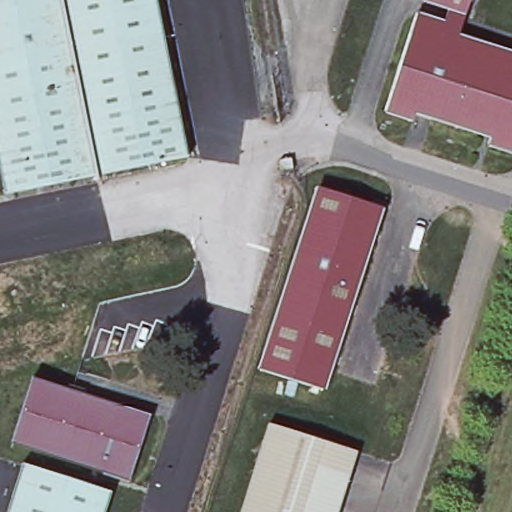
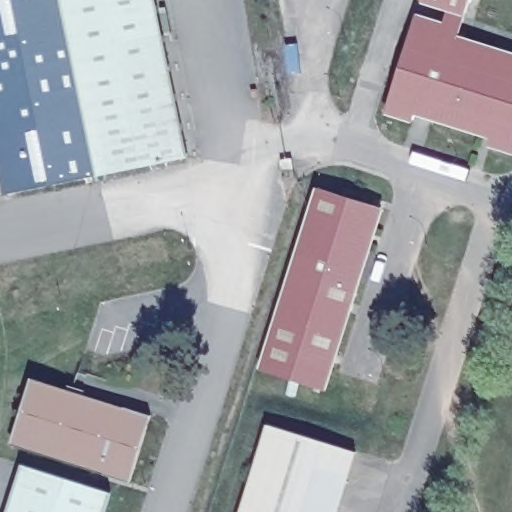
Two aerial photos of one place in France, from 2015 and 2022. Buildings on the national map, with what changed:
unchanged [(2,195),(0,185),(0,0),(57,0),(94,176),(2,195)]
unchanged [(94,176),(57,0),(153,0),(185,157),(94,176)]
unchanged [(468,0),(463,16),(457,38),(433,31),(440,7),(417,0),(468,0)]
unchanged [(512,155),(482,145),(485,137),(415,116),(412,125),(381,115),(410,24),(433,31),(457,38),(512,54),(512,155)]
unchanged [(380,205),(325,386),(263,369),(318,187),(380,205)]
unchanged [(118,416),(120,407),(152,416),(128,491),(98,482),(100,475),(9,448),(27,390),(118,416)]
unchanged [(355,452),(335,512),(239,512),(268,423),(355,452)]
unchanged [(107,493),(101,512),(0,512),(0,509),(13,464),(107,493)]

